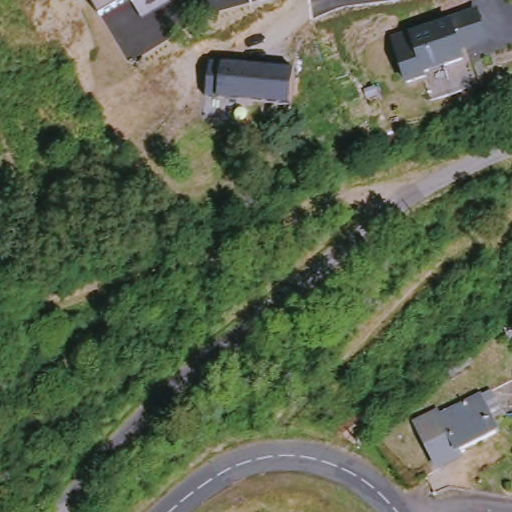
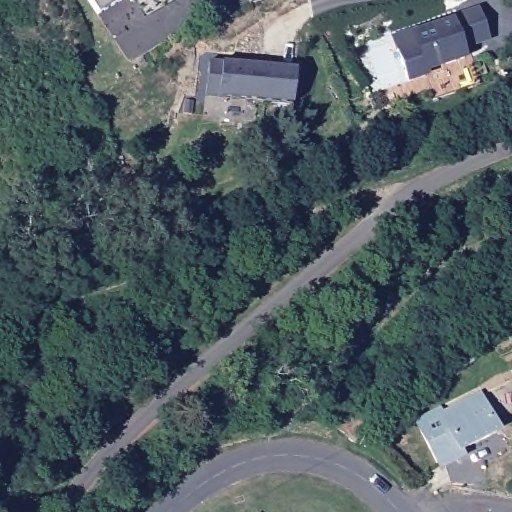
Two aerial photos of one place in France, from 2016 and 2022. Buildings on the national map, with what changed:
unchanged [(98,12),(92,0),(119,0),(98,12)]
unchanged [(132,0),(174,0),(142,18),(132,0)]
unchanged [(491,45),(465,55),(467,64),(427,76),(429,81),(407,87),(393,37),(412,32),(451,20),(480,10),(491,45)]
unchanged [(294,108),(219,99),(207,97),(212,62),(224,64),(297,73),(294,108)]
unchanged [(446,418),(447,422),(484,402),(502,438),(465,458),(464,455),(442,466),(422,430),(446,418)]
unchanged [(363,407),(377,426),(357,443),(337,428),(363,407)]

